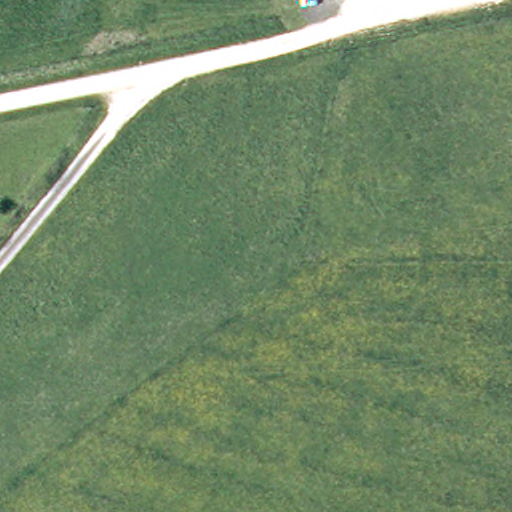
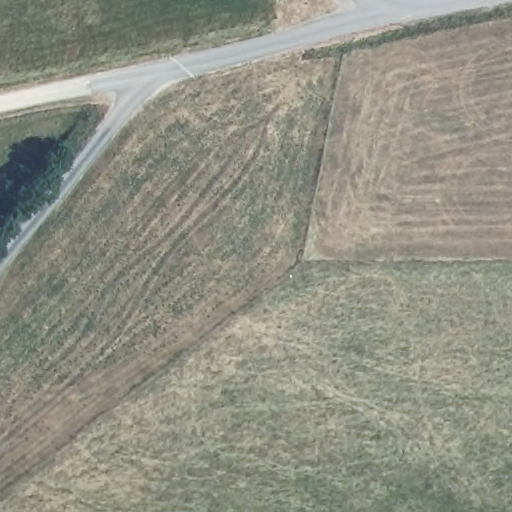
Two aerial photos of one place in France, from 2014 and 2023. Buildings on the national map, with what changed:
[]

